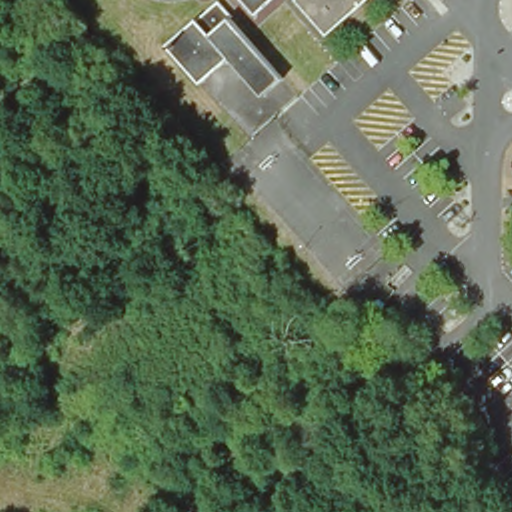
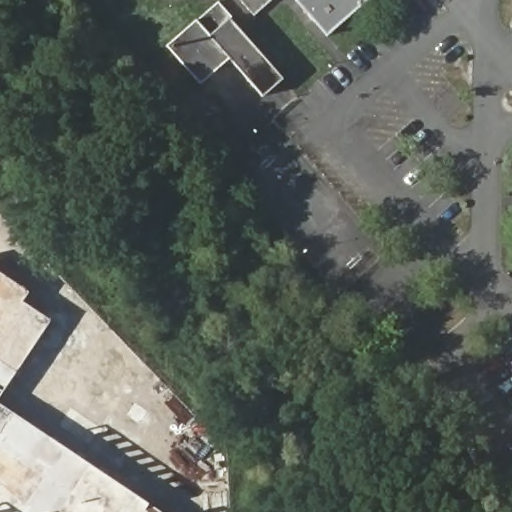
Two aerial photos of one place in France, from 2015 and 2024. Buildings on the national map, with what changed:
unchanged [(240,0),(273,0),(254,16),(240,0)]
unchanged [(300,0),(370,0),(326,39),(295,4),(300,0)]
unchanged [(281,78),(262,95),(230,59),(201,84),(167,45),(197,21),(217,4),(230,20),(281,78)]
new [(29,291),(22,301),(50,320),(0,395),(0,273),(29,291)]
new [(49,437),(162,512),(0,512),(0,403),(49,437)]

